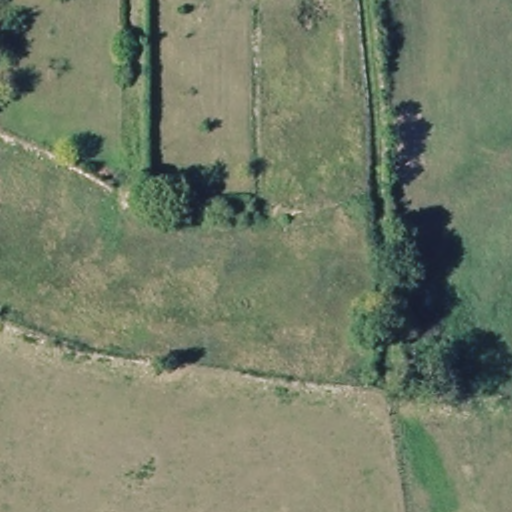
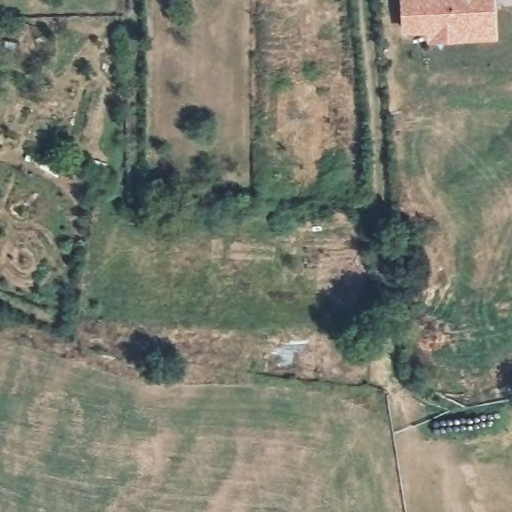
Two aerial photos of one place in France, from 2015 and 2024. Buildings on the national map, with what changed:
new [(496,39),(429,42),(428,35),(402,36),(399,0),(495,0),(496,39)]

